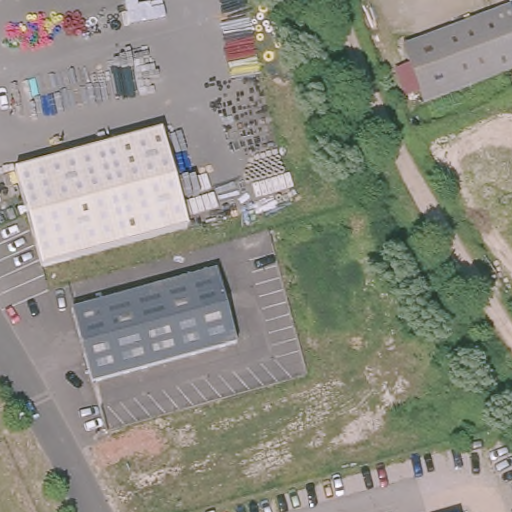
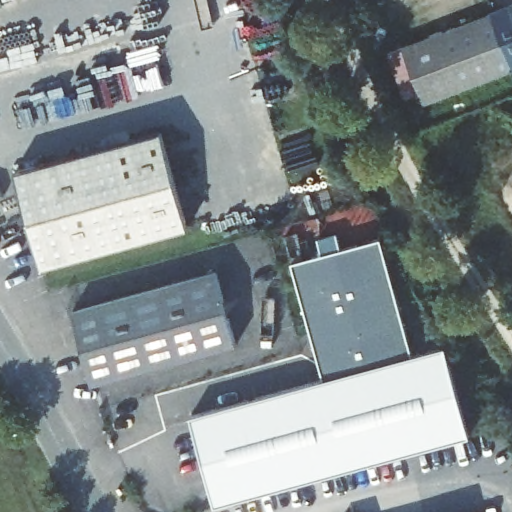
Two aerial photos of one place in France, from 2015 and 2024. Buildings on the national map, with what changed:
unchanged [(491,19),(512,11),(512,64),(508,65),(424,96),(408,49),(491,19)]
unchanged [(167,128),(193,225),(48,265),(21,167),(167,128)]
new [(324,375),(293,258),(383,235),(414,351),(446,343),(470,432),(214,500),(191,410),(324,375)]
unchanged [(218,267),(238,340),(92,379),(73,306),(218,267)]

